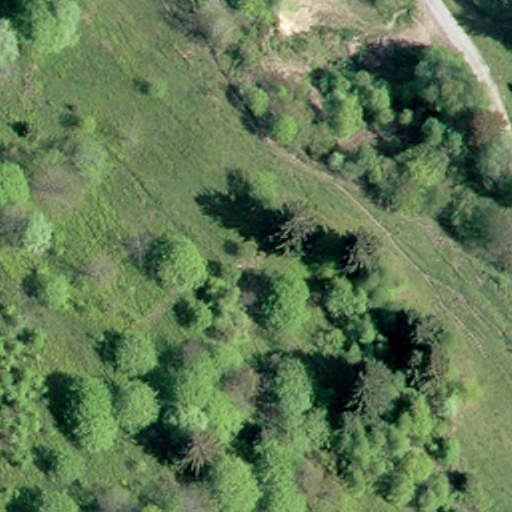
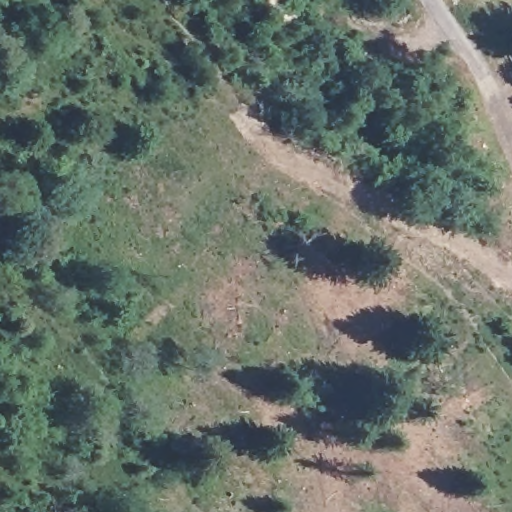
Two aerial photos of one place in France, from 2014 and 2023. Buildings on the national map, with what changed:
[]

